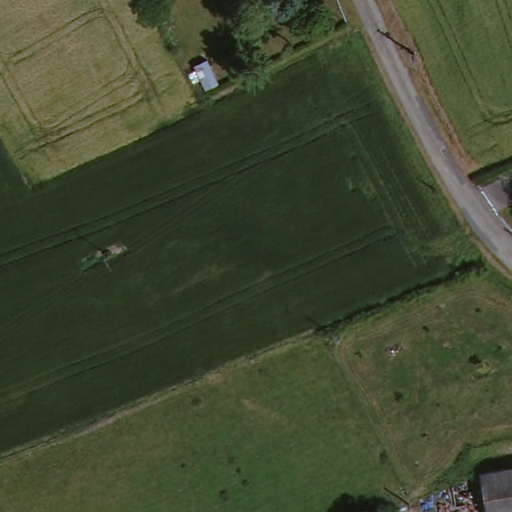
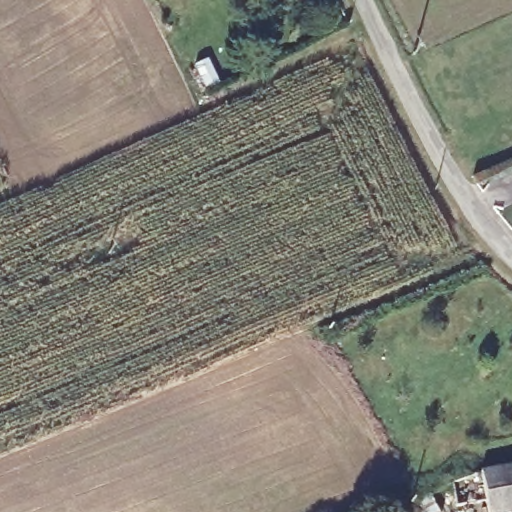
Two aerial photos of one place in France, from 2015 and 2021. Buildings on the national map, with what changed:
unchanged [(512,512),(485,512),(477,480),(512,473),(512,512)]

